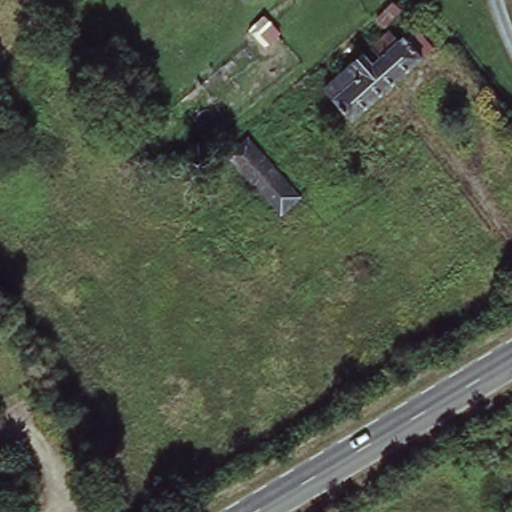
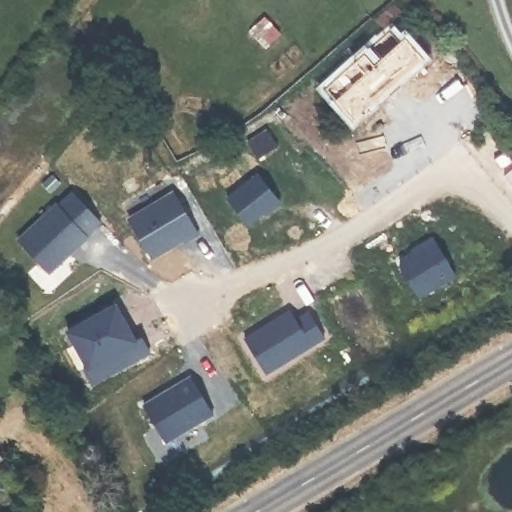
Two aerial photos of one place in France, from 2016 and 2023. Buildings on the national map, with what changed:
new [(282,33),(265,49),(247,30),(265,15),(282,33)]
unchanged [(421,56),(349,118),(319,84),(358,50),(367,59),(399,32),(421,56)]
demolished [(284,216),(236,162),(252,147),(301,200),(284,216)]
new [(260,171),(282,200),(269,209),(266,206),(248,220),(228,195),(260,171)]
new [(174,191),(201,233),(187,241),(184,237),(153,254),(130,219),(174,191)]
new [(58,201),(87,233),(49,268),(20,237),(58,201)]
new [(143,334),(151,352),(89,384),(77,362),(81,359),(63,324),(92,309),(114,298),(128,326),(135,338),(143,334)]
new [(291,308),(297,317),(310,309),(325,335),(267,370),(246,335),(291,308)]
new [(193,375),(215,410),(168,437),(146,403),(193,375)]

